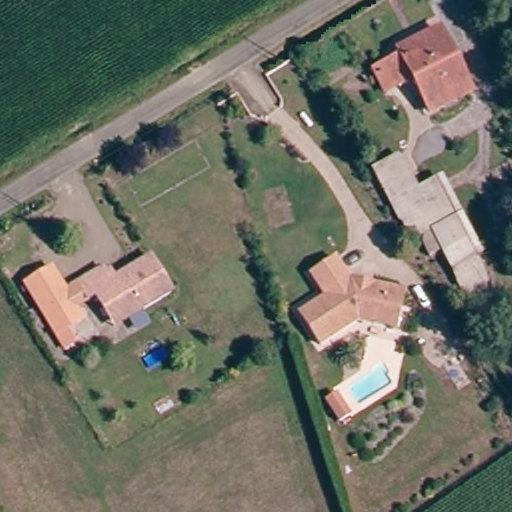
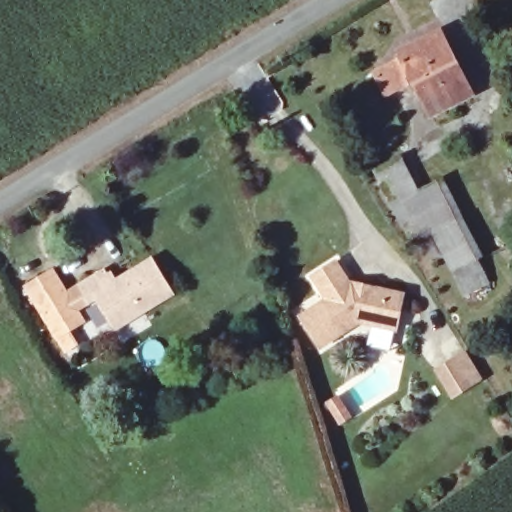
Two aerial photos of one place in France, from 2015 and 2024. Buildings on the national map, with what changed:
unchanged [(475,94),(436,117),(415,85),(400,93),(386,71),(402,61),(399,56),(438,32),(475,94)]
unchanged [(481,254),(459,270),(435,233),(418,244),(401,218),(397,220),(371,179),(397,162),(417,192),(434,181),(481,254)]
unchanged [(105,260),(114,275),(156,249),(179,287),(119,322),(101,293),(90,299),(76,277),(105,260)]
unchanged [(318,351),(296,317),(322,301),(306,277),(334,261),(346,281),(398,285),(397,329),(355,326),(318,351)]
unchanged [(70,295),(43,312),(23,278),(49,262),(64,285),(70,295)]
unchanged [(62,342),(54,329),(43,312),(70,295),(64,285),(76,277),(90,299),(77,306),(81,313),(65,323),(73,336),(62,342)]
new [(483,379),(451,399),(433,368),(465,349),(483,379)]
unchanged [(355,401),(344,408),(330,387),(341,380),(355,401)]

